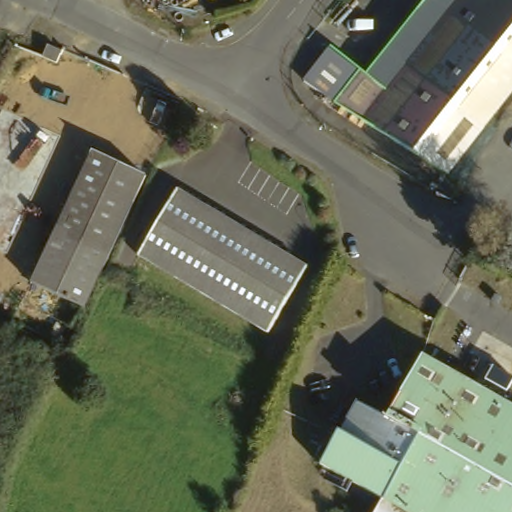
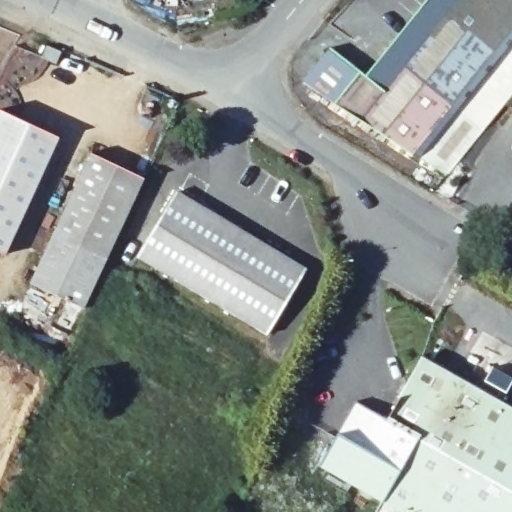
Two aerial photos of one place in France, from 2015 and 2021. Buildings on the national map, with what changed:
unchanged [(440,181),(326,104),(352,68),(361,76),(420,0),(512,0),(512,91),(440,181)]
unchanged [(352,68),(326,104),(296,79),(322,45),(352,68)]
unchanged [(47,59),(60,65),(54,79),(41,73),(47,59)]
new [(67,131),(12,249),(0,244),(0,120),(8,102),(67,131)]
unchanged [(141,176),(79,308),(27,279),(89,149),(141,176)]
unchanged [(172,193),(304,265),(269,330),(137,259),(172,193)]
unchanged [(379,407),(414,343),(512,397),(512,512),(381,512),(389,497),(312,455),(347,390),(379,407)]

